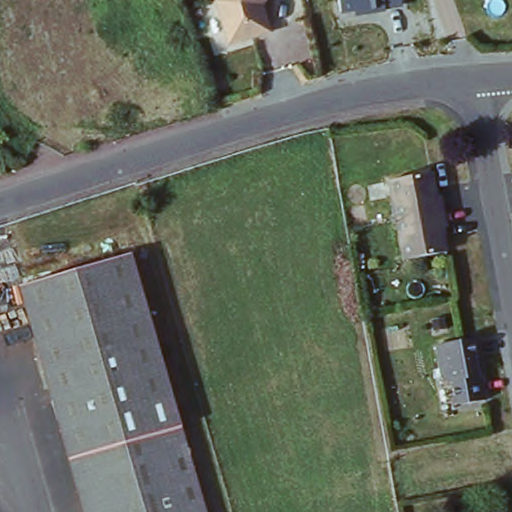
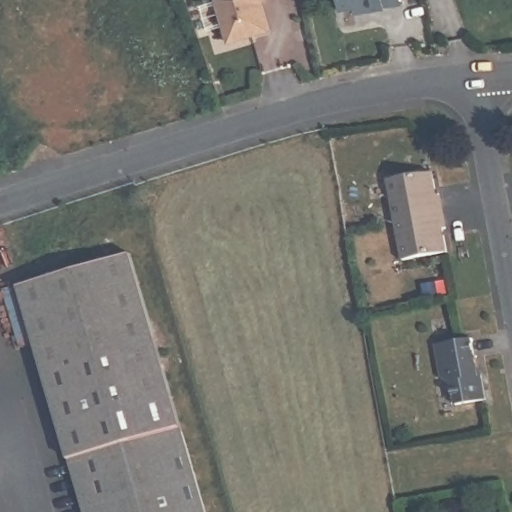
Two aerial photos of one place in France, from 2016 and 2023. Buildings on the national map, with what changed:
unchanged [(266,5),(271,35),(228,49),(214,8),(218,0),(268,0),(266,5)]
unchanged [(403,7),(343,16),(340,0),(402,0),(403,7)]
unchanged [(429,193),(436,194),(443,225),(436,225),(441,252),(400,257),(388,179),(426,174),(429,193)]
unchanged [(130,250),(206,512),(81,512),(16,282),(130,250)]
unchanged [(452,403),(448,377),(440,378),(433,343),(459,338),(470,337),(475,370),(481,370),(486,393),(481,396),(452,403)]

